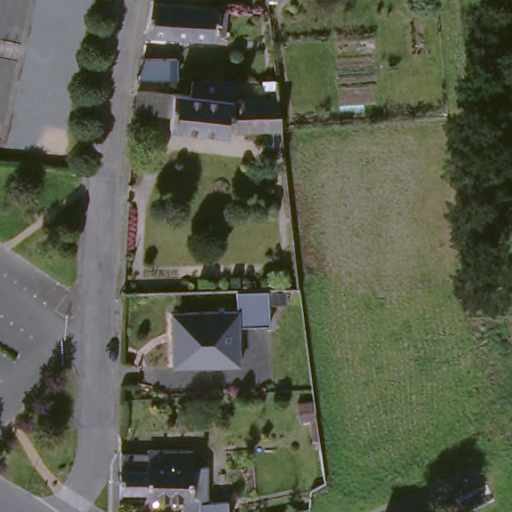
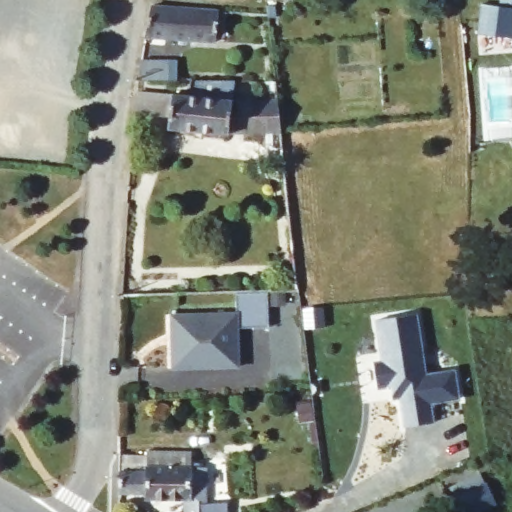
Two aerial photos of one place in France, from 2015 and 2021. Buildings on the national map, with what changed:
unchanged [(222,32),(221,37),(150,32),(157,0),(224,5),(224,7),(231,7),(230,20),(229,32),(222,32)]
new [(476,32),(481,0),(488,0),(512,4),(512,37),(476,32)]
unchanged [(147,60),(181,60),(180,80),(173,80),(143,80),(146,62),(147,60)]
unchanged [(234,134),(174,127),(174,117),(139,115),(142,92),(177,95),(177,94),(196,96),(197,80),(241,81),(238,102),(284,100),(287,130),(235,132),(234,134)]
unchanged [(262,90),(262,81),(277,81),(278,89),(262,90)]
unchanged [(274,322),(243,323),(244,362),(177,363),(177,345),(180,345),(180,330),(177,330),(176,310),(241,308),(240,288),(273,287),(274,322)]
new [(387,360),(386,351),(382,352),(377,319),(417,313),(426,373),(454,369),(460,398),(432,402),(434,422),(406,426),(401,397),(394,398),(392,386),(378,387),(374,362),(387,360)]
unchanged [(299,398),(318,395),(327,452),(331,478),(316,487),(299,398)]
unchanged [(124,492),(124,454),(153,455),(153,451),(197,452),(197,467),(212,467),(212,502),(232,501),(232,512),(190,512),(190,498),(151,498),(152,492),(124,492)]
unchanged [(464,512),(458,500),(452,488),(482,472),(487,483),(496,500),(474,512),(464,512)]

